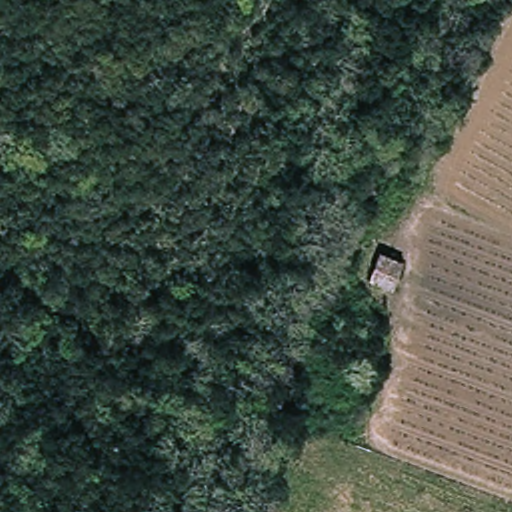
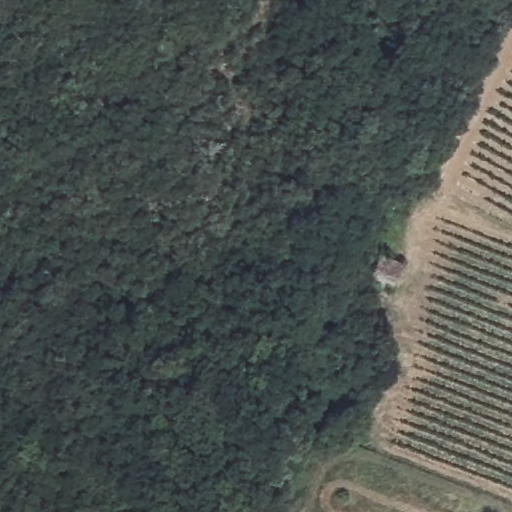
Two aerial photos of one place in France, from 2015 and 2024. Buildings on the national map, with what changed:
unchanged [(366,282),(376,255),(399,265),(391,296),(366,282)]

